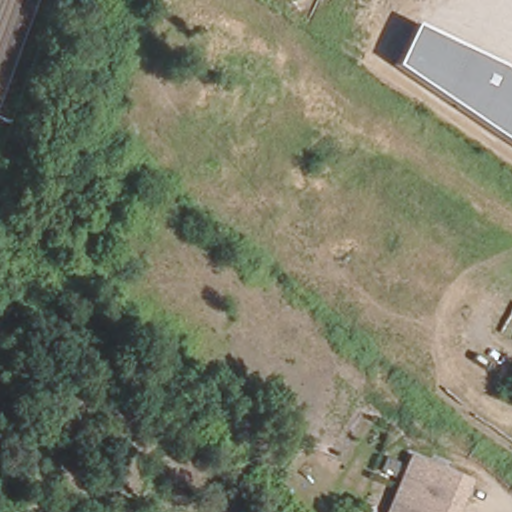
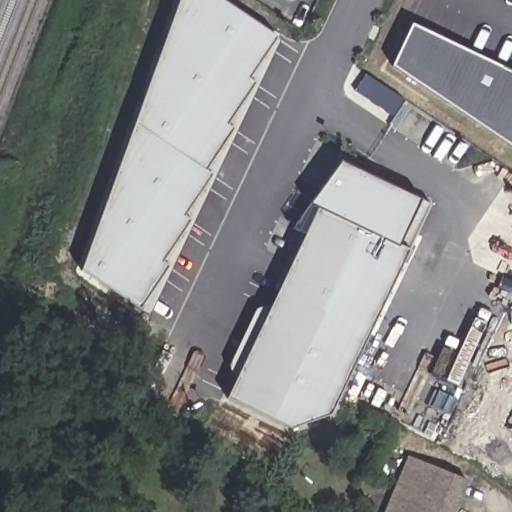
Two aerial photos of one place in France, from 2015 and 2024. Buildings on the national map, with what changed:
new [(86,273),(185,0),(218,0),(279,41),(252,84),(258,90),(231,128),(235,134),(209,172),(214,181),(187,219),(192,225),(164,266),(170,271),(142,313),(86,273)]
unchanged [(393,65),(413,24),(512,71),(512,146),(393,65)]
unchanged [(24,162),(16,182),(0,176),(0,173),(7,155),(24,162)]
new [(423,204),(405,250),(412,252),(334,417),(296,432),(230,402),(307,239),(295,231),(347,167),(423,204)]
unchanged [(416,461),(470,486),(458,512),(393,512),(402,491),(416,461)]

